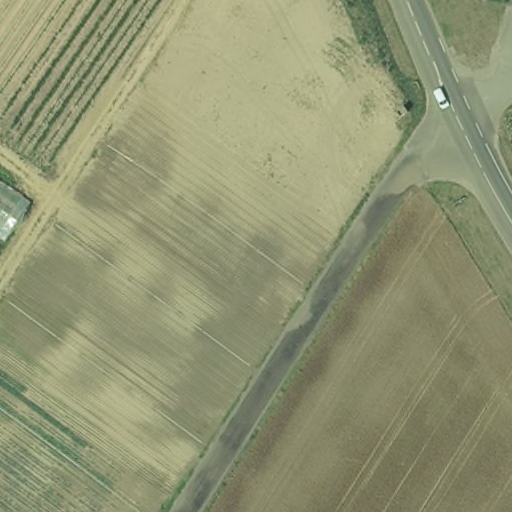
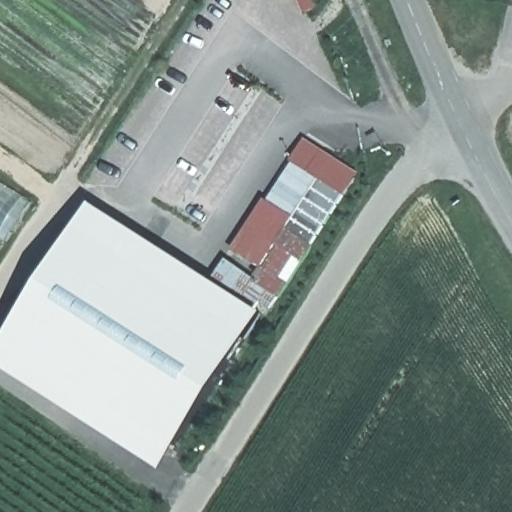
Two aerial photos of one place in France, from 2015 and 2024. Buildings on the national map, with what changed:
new [(308,17),(300,0),(312,0),(318,12),(308,17)]
new [(218,288),(242,260),(209,236),(241,185),(273,203),(311,143),(361,172),(266,319),(218,288)]
unchanged [(6,243),(0,239),(0,180),(32,202),(6,243)]
new [(171,471),(10,365),(108,217),(218,288),(266,319),(171,471)]

